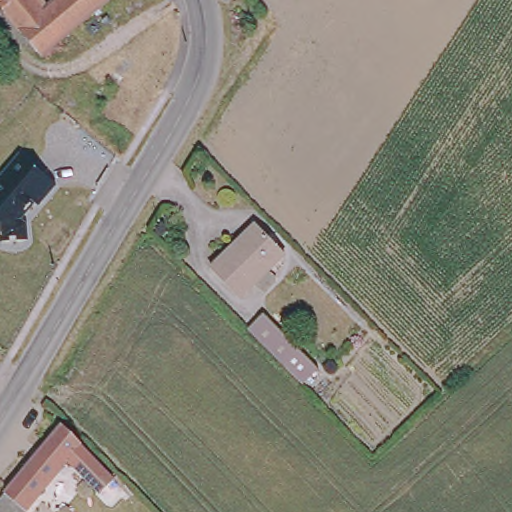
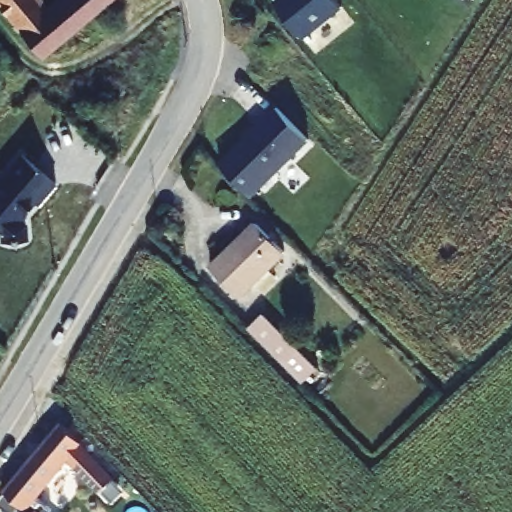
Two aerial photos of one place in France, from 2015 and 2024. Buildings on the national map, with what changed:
unchanged [(45,53),(1,0),(42,0),(48,7),(57,0),(110,0),(45,53)]
new [(280,0),(339,0),(344,6),(304,39),(276,3),(280,0)]
new [(276,106),(309,140),(251,193),(220,162),(276,106)]
unchanged [(21,152),(59,182),(42,203),(37,200),(23,218),(29,222),(30,239),(2,240),(2,232),(0,230),(0,176),(21,152)]
unchanged [(244,294),(215,264),(260,221),(287,249),(244,294)]
unchanged [(299,350),(286,363),(249,325),(262,312),(299,350)]
unchanged [(25,508),(27,510),(25,512),(0,512),(0,498),(64,424),(81,442),(80,444),(115,480),(102,494),(78,467),(70,458),(25,508)]

